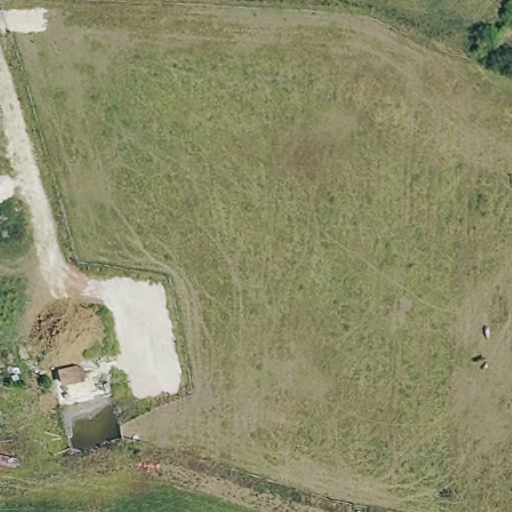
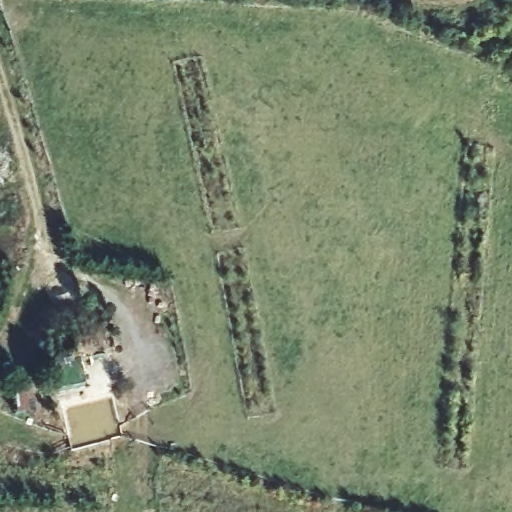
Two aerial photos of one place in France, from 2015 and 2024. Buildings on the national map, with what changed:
[]

